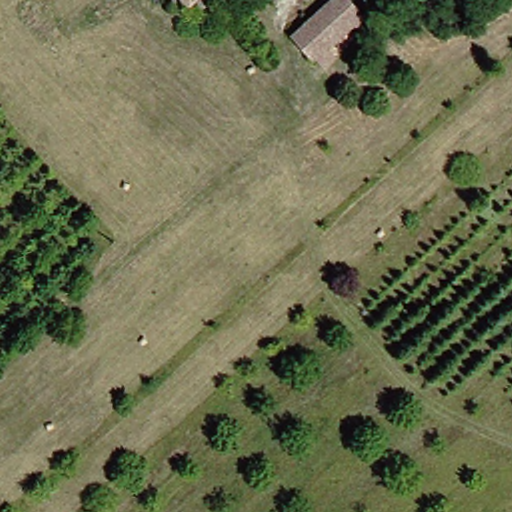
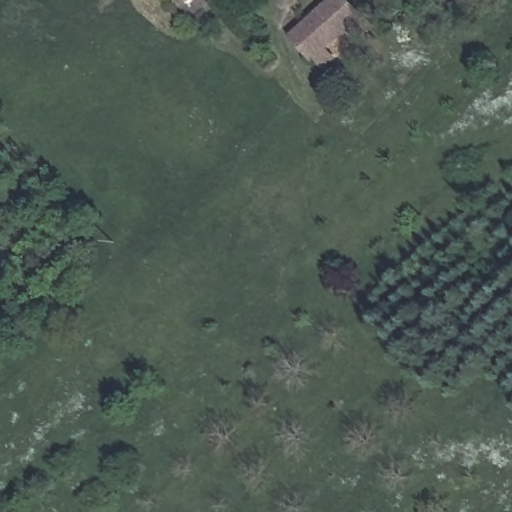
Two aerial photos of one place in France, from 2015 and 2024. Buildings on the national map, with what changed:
unchanged [(188,0),(191,0),(190,2),(188,0)]
unchanged [(330,70),(307,45),(303,47),(291,35),(329,0),(350,0),(375,28),(330,70)]

